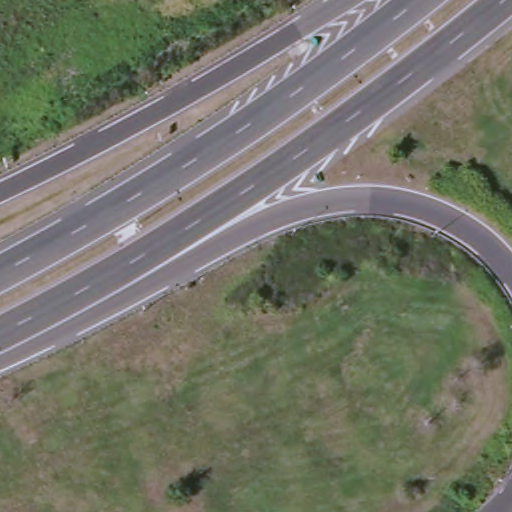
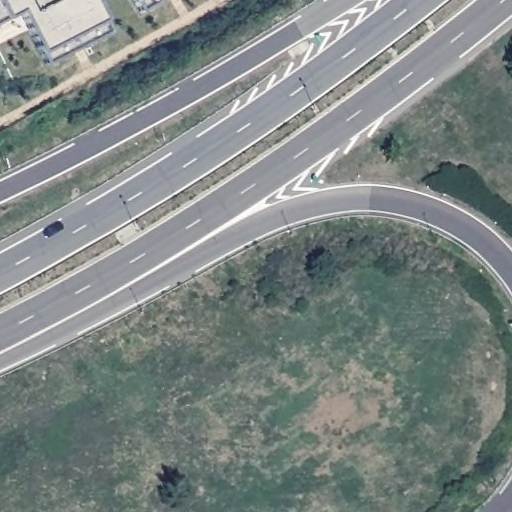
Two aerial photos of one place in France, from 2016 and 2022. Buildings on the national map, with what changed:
new [(103,20),(108,33),(48,62),(43,52),(21,14),(6,21),(0,25),(0,0),(93,0),(103,20)]
new [(141,11),(137,1),(136,0),(160,0),(141,11)]

